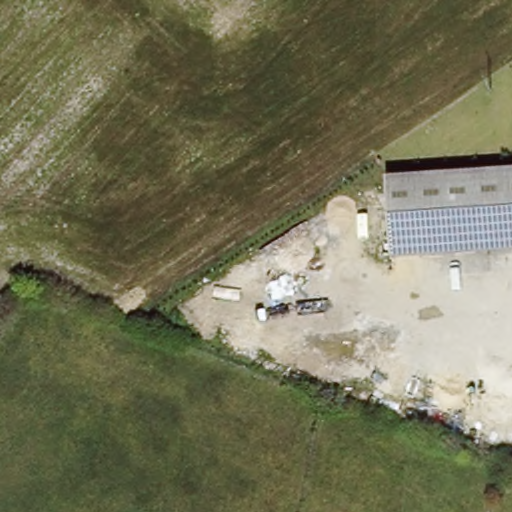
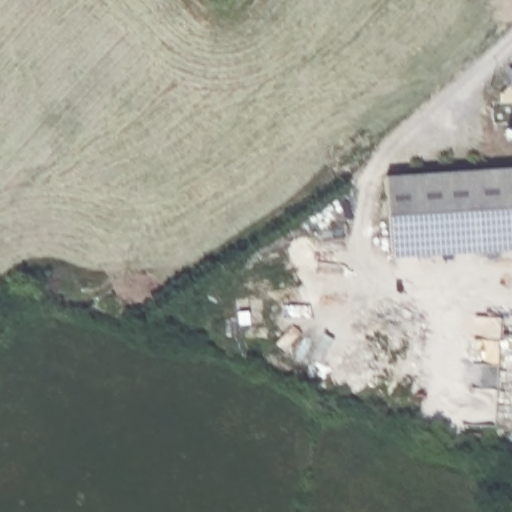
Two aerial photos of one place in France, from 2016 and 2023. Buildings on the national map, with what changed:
unchanged [(512,170),(512,253),(391,260),(385,177),(512,170)]

